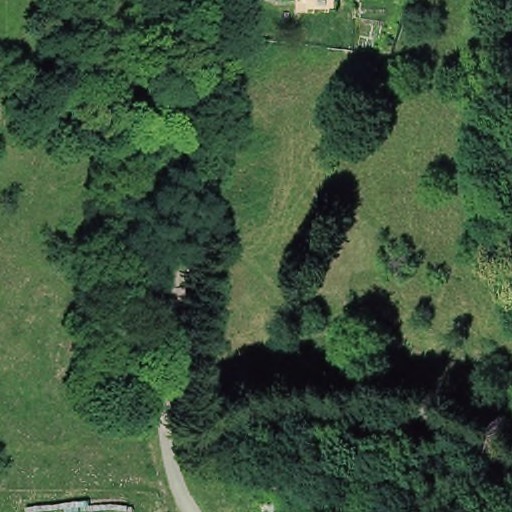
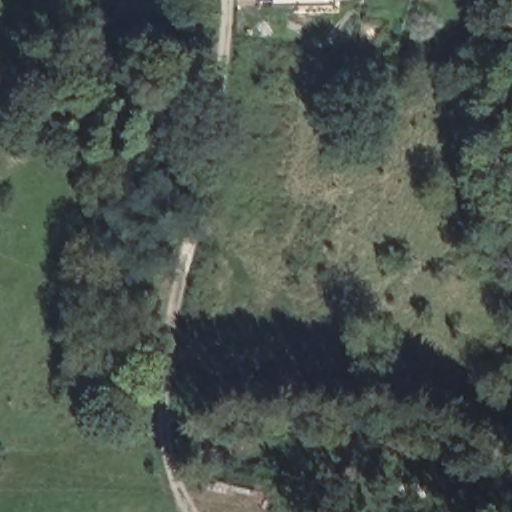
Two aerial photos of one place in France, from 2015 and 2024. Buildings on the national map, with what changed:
unchanged [(115,242),(99,238),(104,217),(119,221),(115,242)]

